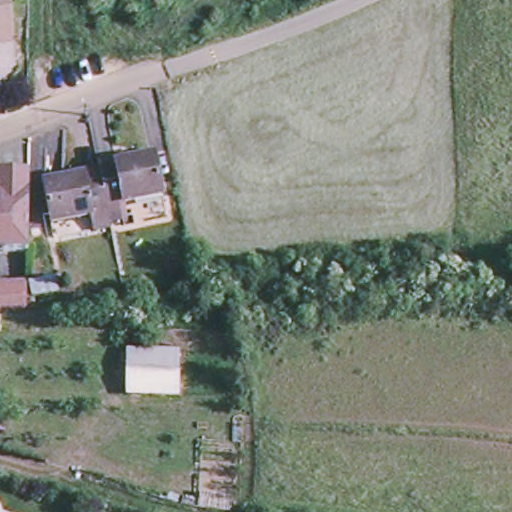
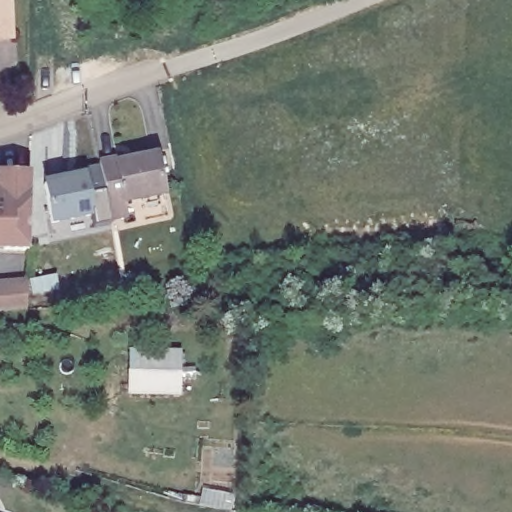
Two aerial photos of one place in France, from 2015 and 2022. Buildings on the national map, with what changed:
unchanged [(8,35),(0,35),(0,0),(6,0),(8,35)]
unchanged [(114,151),(116,158),(150,149),(160,189),(126,194),(129,211),(111,216),(98,159),(97,154),(114,151)]
unchanged [(111,216),(111,217),(90,220),(88,210),(54,217),(46,178),(88,169),(87,161),(98,159),(111,216)]
unchanged [(28,247),(0,247),(0,237),(0,171),(27,172),(28,247)]
unchanged [(27,306),(0,309),(0,281),(28,279),(27,306)]
unchanged [(178,351),(180,391),(128,392),(128,352),(178,351)]

